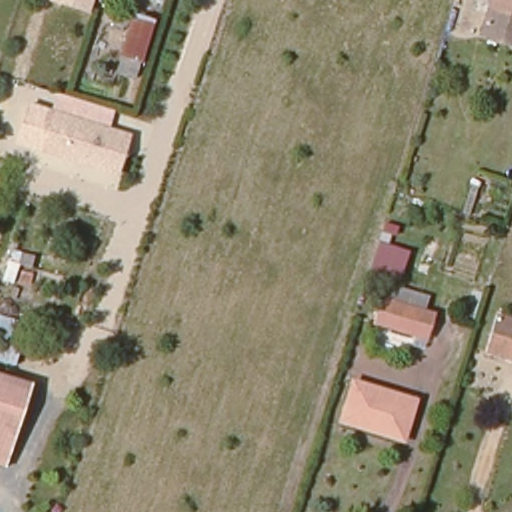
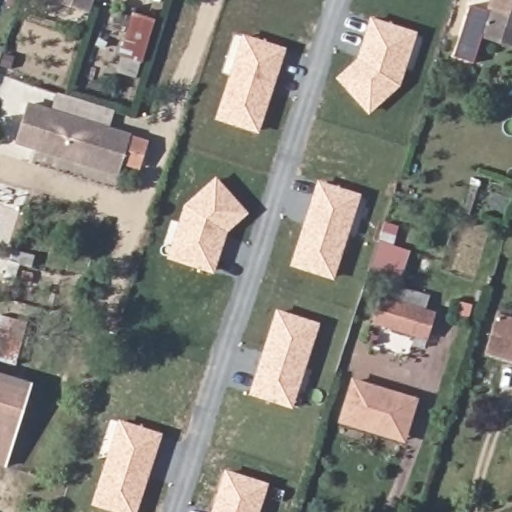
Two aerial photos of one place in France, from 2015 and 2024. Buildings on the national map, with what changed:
unchanged [(51,2),(52,0),(94,0),(89,14),(51,2)]
unchanged [(489,0),(512,0),(512,12),(488,5),(489,0)]
unchanged [(512,39),(480,30),(488,5),(512,12),(512,39)]
unchanged [(154,23),(142,65),(122,59),(134,17),(154,23)]
new [(401,85),(368,115),(335,78),(357,58),(370,17),(417,32),(401,85)]
new [(258,134),(214,120),(242,34),(287,48),(258,134)]
unchanged [(109,127),(131,134),(118,176),(41,153),(41,151),(17,143),(28,103),(49,109),(55,91),(115,109),(109,127)]
new [(227,233),(213,274),(166,258),(183,204),(215,177),(249,213),(227,233)]
new [(360,194),(333,280),(290,266),(317,180),(360,194)]
new [(410,250),(401,279),(370,269),(383,227),(398,231),(394,245),(410,250)]
unchanged [(400,289),(429,298),(425,314),(432,317),(427,337),(375,322),(381,303),(395,307),(400,289)]
new [(320,323),(292,408),(248,394),(276,309),(320,323)]
unchanged [(29,318),(18,359),(0,354),(0,310),(29,318)]
unchanged [(512,322),(512,362),(485,355),(496,317),(512,322)]
unchanged [(0,459),(0,370),(31,380),(7,461),(0,459)]
unchanged [(343,418),(352,385),(414,404),(403,438),(343,418)]
new [(162,433),(137,512),(111,512),(90,505),(119,419),(162,433)]
new [(268,483),(259,512),(211,512),(224,469),(268,483)]

